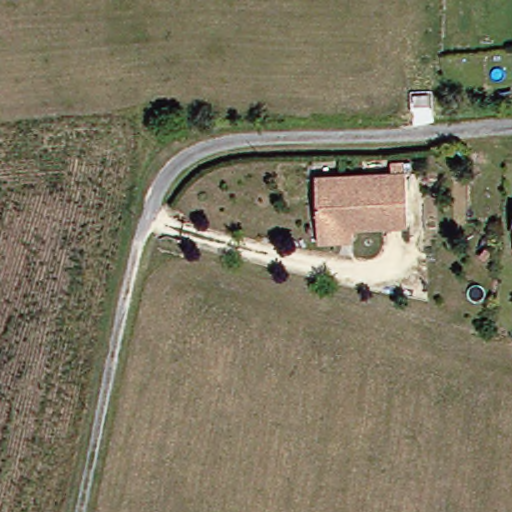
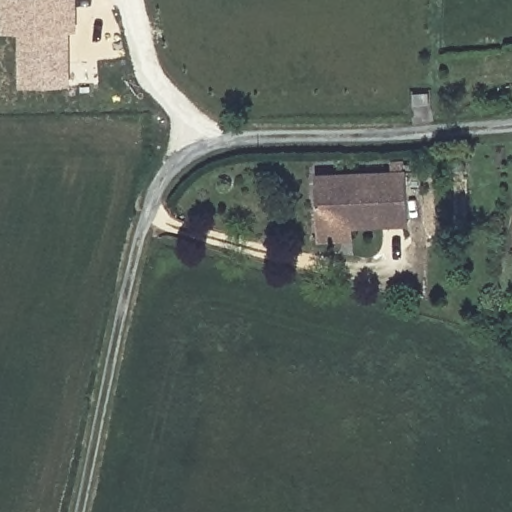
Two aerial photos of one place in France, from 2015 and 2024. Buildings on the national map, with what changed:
new [(0,32),(0,0),(77,0),(77,33),(70,32),(71,86),(19,87),(19,34),(0,32)]
unchanged [(321,236),(322,225),(320,173),(410,171),(410,223),(353,225),(355,235),(321,236)]

